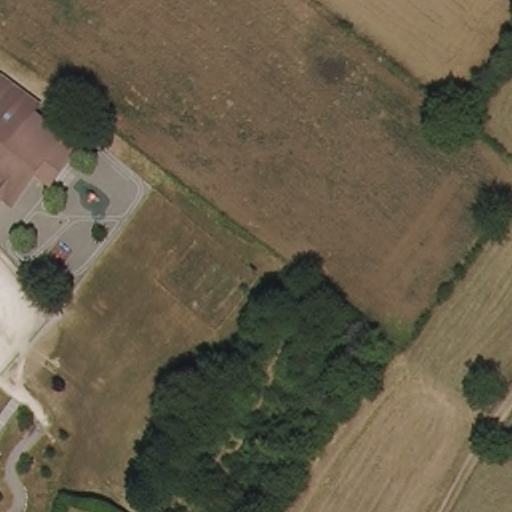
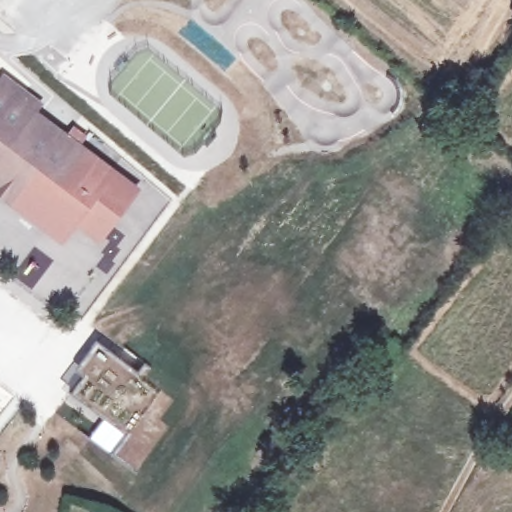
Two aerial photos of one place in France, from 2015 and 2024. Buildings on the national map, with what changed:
unchanged [(38,109),(32,118),(60,138),(78,153),(53,186),(38,175),(14,206),(0,195),(0,93),(7,85),(38,109)]
new [(38,175),(53,186),(78,153),(137,195),(100,245),(77,226),(62,245),(14,206),(38,175)]
new [(60,379),(76,366),(95,341),(114,355),(93,380),(87,376),(75,393),(60,379)]
new [(103,418),(125,435),(110,454),(89,438),(103,418)]

